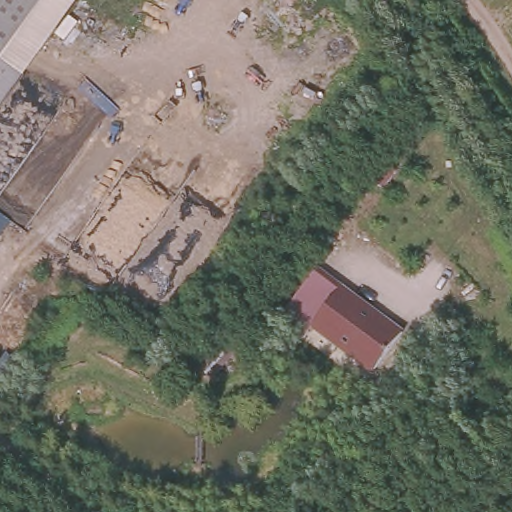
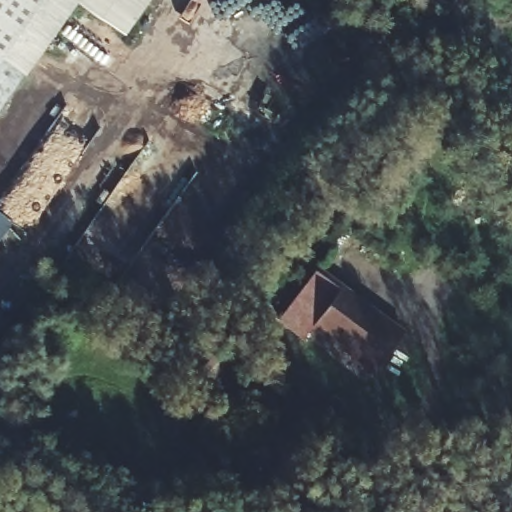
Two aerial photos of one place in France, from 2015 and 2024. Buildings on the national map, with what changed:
unchanged [(0,59),(0,0),(78,0),(23,76),(0,59)]
new [(150,0),(124,37),(75,4),(78,0),(150,0)]
unchanged [(0,107),(0,59),(23,76),(0,107)]
unchanged [(0,229),(0,212),(10,219),(0,229)]
unchanged [(312,330),(305,341),(277,319),(318,267),(405,333),(372,373),(312,330)]

